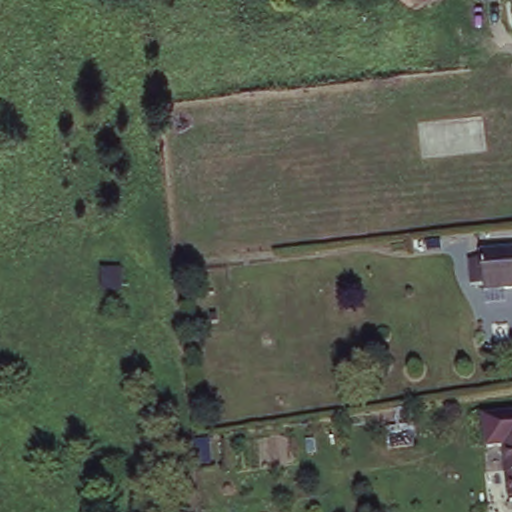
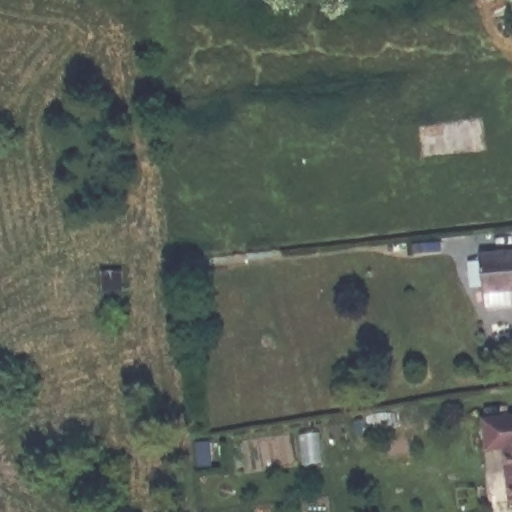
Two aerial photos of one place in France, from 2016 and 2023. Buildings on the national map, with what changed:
unchanged [(482,293),(479,252),(512,249),(512,289),(482,293)]
unchanged [(512,408),(512,460),(510,438),(493,440),(490,410),(512,408)]

